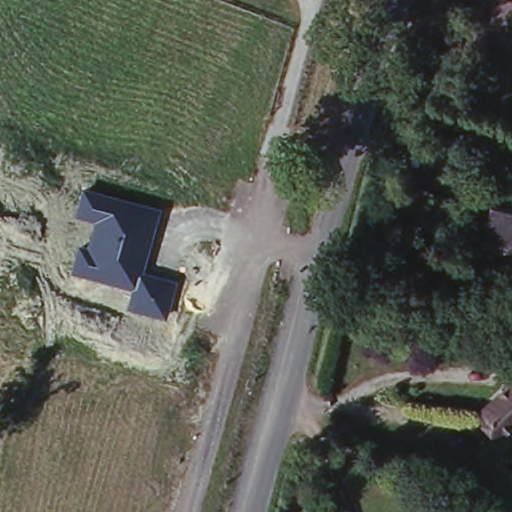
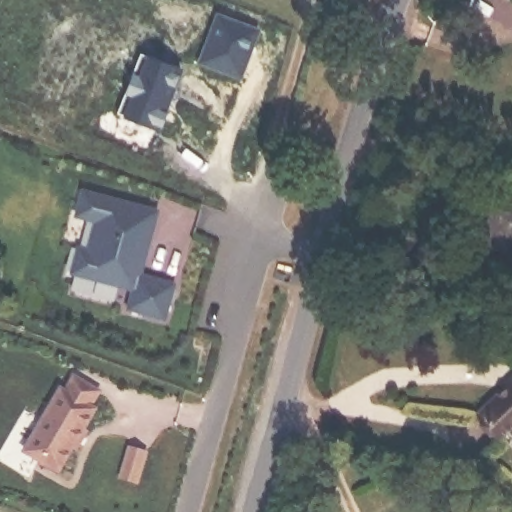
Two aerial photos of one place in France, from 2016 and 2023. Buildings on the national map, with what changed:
new [(217,16),(256,31),(239,76),(200,62),(217,16)]
new [(140,53),(180,69),(164,112),(166,113),(161,126),(159,125),(157,129),(117,113),(140,53)]
unchanged [(144,274),(176,283),(167,319),(127,309),(132,289),(71,272),(79,247),(88,249),(95,221),(74,215),(82,186),(162,206),(144,274)]
unchanged [(491,194),(512,204),(512,250),(497,241),(491,251),(467,236),(491,194)]
new [(60,384),(66,387),(74,373),(100,389),(94,405),(97,407),(59,472),(22,451),(60,384)]
unchanged [(512,377),(512,423),(497,435),(475,407),(512,377)]
new [(150,450),(140,486),(119,479),(128,445),(150,450)]

